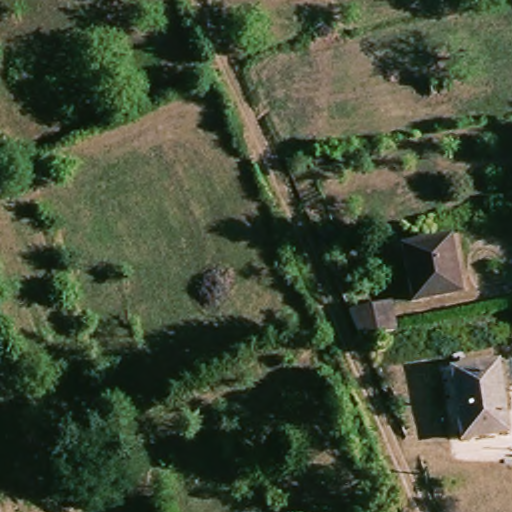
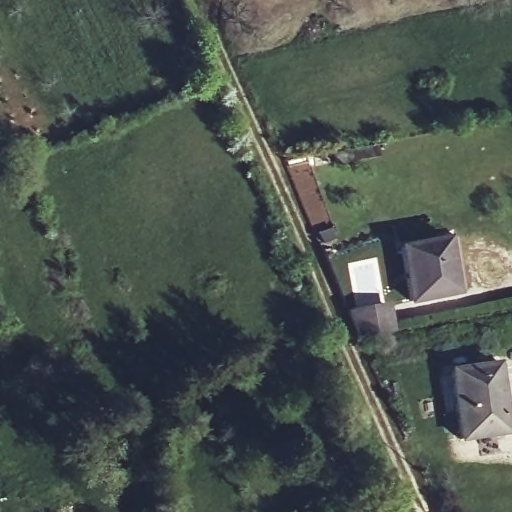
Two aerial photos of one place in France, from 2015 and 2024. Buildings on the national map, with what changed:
unchanged [(443,89),(446,102),(433,105),(429,92),(443,89)]
unchanged [(454,292),(411,299),(404,250),(446,243),(454,292)]
unchanged [(449,375),(493,369),(502,434),(458,440),(449,375)]

